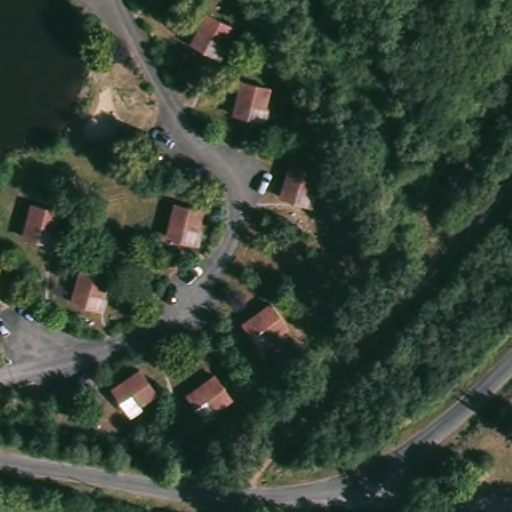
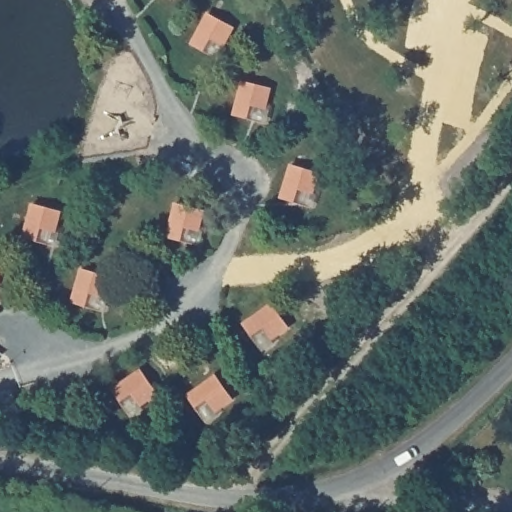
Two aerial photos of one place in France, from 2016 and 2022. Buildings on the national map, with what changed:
unchanged [(230,47),(220,42),(214,51),(199,39),(202,33),(213,15),(239,31),(234,41),(230,47)]
unchanged [(248,87),(275,96),(269,114),(257,110),(253,122),(238,116),(248,87)]
unchanged [(320,176),(315,195),(302,192),(299,205),(283,200),(291,168),(320,176)]
unchanged [(64,216),(59,233),(53,230),(49,243),(29,237),(36,209),(64,216)]
unchanged [(203,239),(198,257),(191,255),(188,268),(168,263),(176,232),(203,239)]
unchanged [(85,273),(113,281),(108,300),(95,296),(93,308),(76,304),(85,273)]
unchanged [(293,333),(268,350),(260,339),(253,345),(243,332),(275,309),(293,333)]
unchanged [(234,400),(215,414),(208,403),(199,410),(189,393),(215,375),(234,400)]
unchanged [(143,376),(158,401),(141,412),(135,403),(127,408),(117,391),(143,376)]

